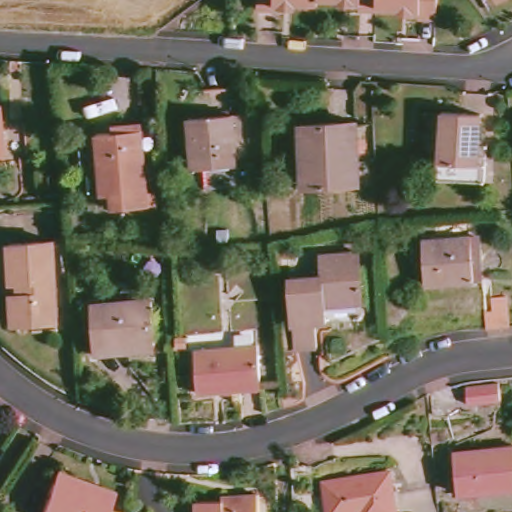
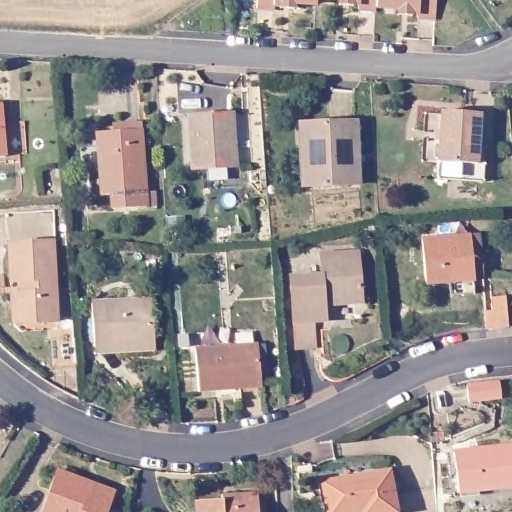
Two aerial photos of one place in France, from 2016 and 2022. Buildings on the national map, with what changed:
unchanged [(253,0),(312,0),(312,4),(277,2),(276,7),(270,6),(270,10),(252,9),(253,0)]
unchanged [(431,19),(413,17),(414,14),(407,14),(407,10),(371,8),(371,11),(354,10),(354,4),(347,4),(347,0),(432,0),(431,19)]
unchanged [(496,0),(498,0),(496,1),(496,0)]
unchanged [(5,156),(0,156),(0,105),(5,156)]
unchanged [(442,113),(481,116),(479,145),(487,145),(485,182),(437,179),(442,113)]
unchanged [(189,117),(232,115),(236,167),(193,170),(189,117)]
unchanged [(357,122),(359,185),(302,187),(299,124),(357,122)]
unchanged [(140,125),(140,132),(147,207),(114,210),(112,194),(102,195),(97,127),(124,126),(140,125)]
unchanged [(376,225),(376,231),(367,232),(367,226),(376,225)]
unchanged [(422,241),(478,237),(481,272),(474,273),(474,279),(426,284),(422,241)]
unchanged [(8,245),(53,242),(57,322),(12,325),(8,245)]
unchanged [(285,277),(317,276),(316,255),(354,252),(357,303),(321,306),(322,322),(311,322),(312,347),(290,350),(285,277)]
unchanged [(154,273),(163,272),(164,284),(155,285),(154,273)]
unchanged [(493,311),(492,297),(507,296),(509,326),(494,327),(487,328),(486,311),(493,311)]
unchanged [(94,355),(94,347),(91,305),(152,301),(155,343),(155,351),(94,355)]
unchanged [(178,347),(177,337),(185,337),(186,346),(178,347)]
unchanged [(190,350),(253,345),(256,387),(236,388),(237,401),(229,402),(228,394),(216,395),(216,390),(193,392),(190,350)]
unchanged [(501,399),(469,402),(467,385),(499,382),(501,399)]
unchanged [(283,397),(294,397),(295,403),(283,407),(283,397)]
unchanged [(512,446),(512,487),(458,493),(454,452),(512,446)]
unchanged [(390,471),(397,512),(365,512),(365,511),(359,512),(329,512),(323,482),(390,471)]
unchanged [(110,493),(105,508),(115,512),(37,512),(52,472),(110,493)]
unchanged [(213,495),(213,492),(248,490),(249,512),(188,512),(187,497),(213,495)]

